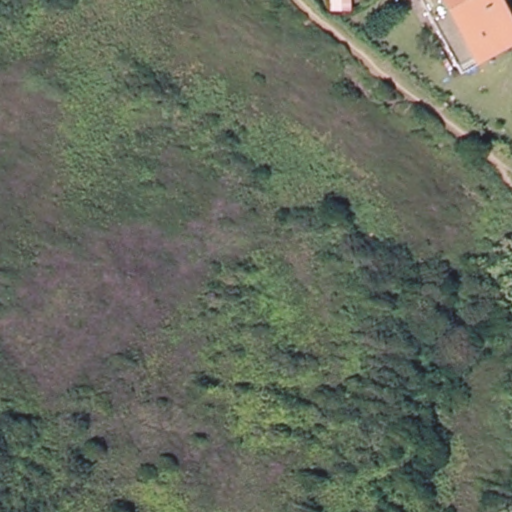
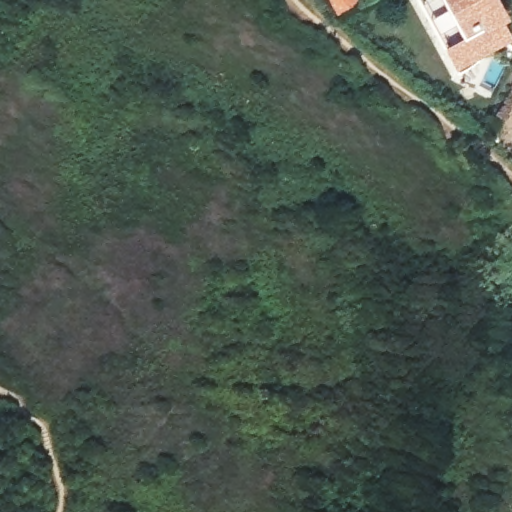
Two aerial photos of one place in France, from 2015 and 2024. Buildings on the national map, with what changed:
unchanged [(429,0),(503,0),(512,18),(512,37),(462,64),(429,0)]

